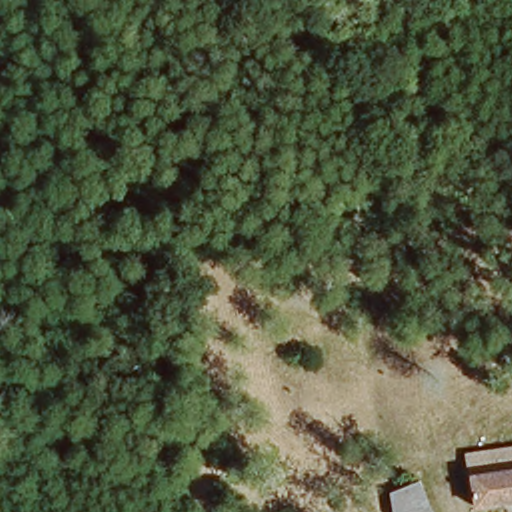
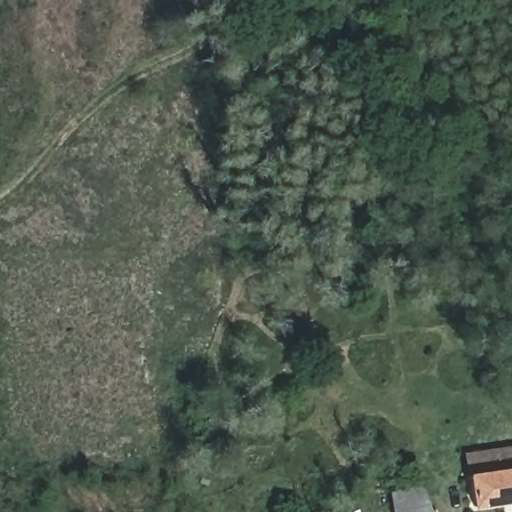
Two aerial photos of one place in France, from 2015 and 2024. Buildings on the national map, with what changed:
unchanged [(473,475),(512,468),(512,501),(478,507),(473,475)]
unchanged [(398,512),(390,492),(417,481),(430,512),(398,512)]

